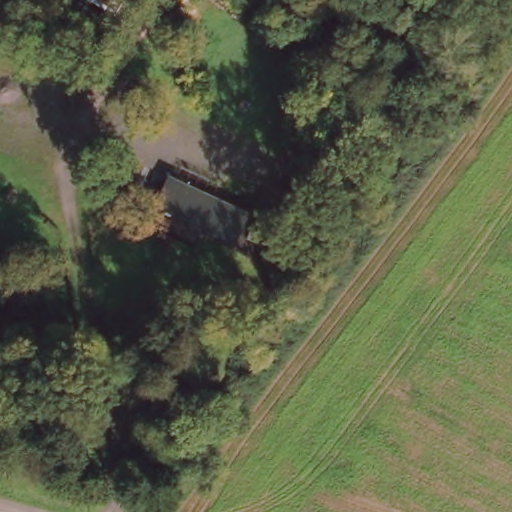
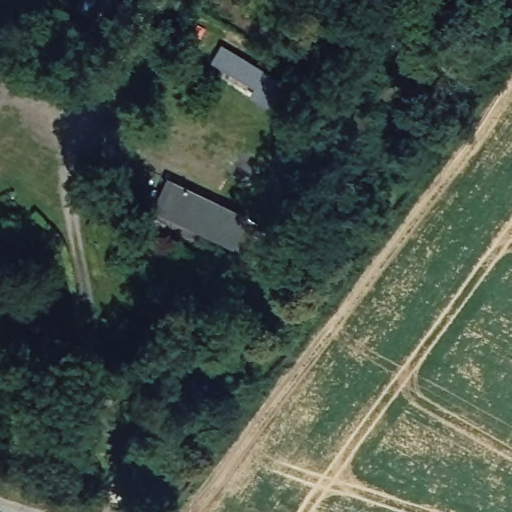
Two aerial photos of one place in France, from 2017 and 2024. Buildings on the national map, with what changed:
unchanged [(117,46),(67,17),(76,0),(121,0),(137,9),(117,46)]
new [(276,76),(272,83),(279,87),(282,81),(290,85),(275,111),(250,96),(255,87),(212,62),(222,44),(276,76)]
unchanged [(219,184),(212,198),(249,214),(235,245),(154,209),(176,163),(219,184)]

